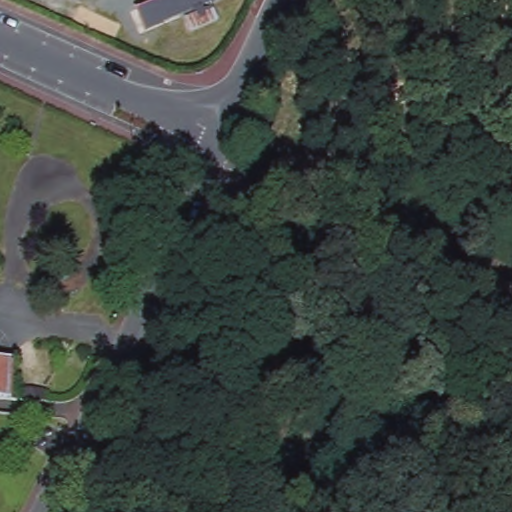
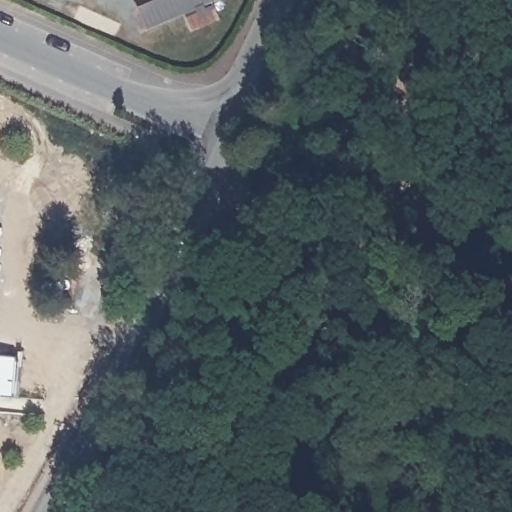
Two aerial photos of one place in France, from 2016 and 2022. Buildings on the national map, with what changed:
unchanged [(218,0),(203,6),(205,10),(213,7),(218,21),(189,32),(184,17),(197,12),(196,9),(145,30),(136,9),(158,0),(218,0)]
unchanged [(12,392),(0,391),(0,348),(16,351),(12,392)]

